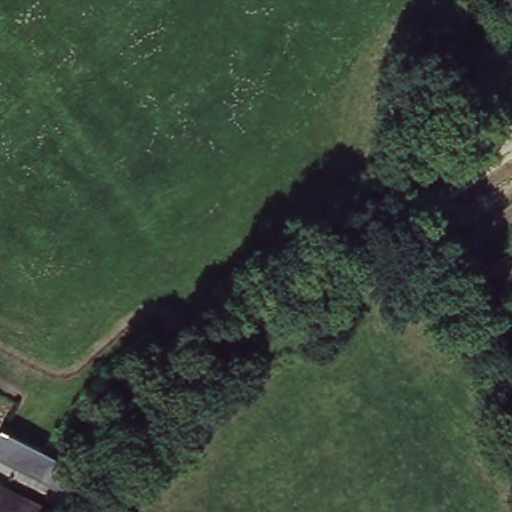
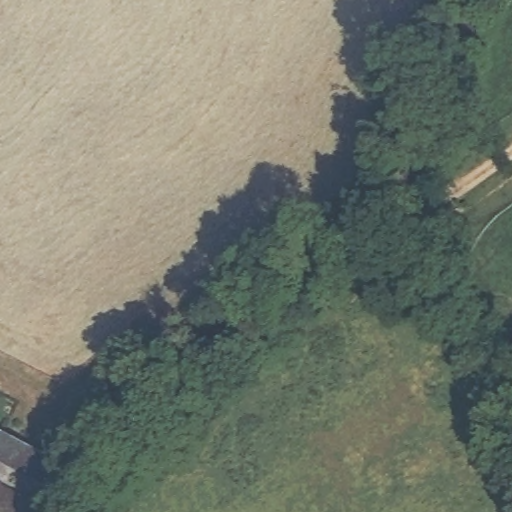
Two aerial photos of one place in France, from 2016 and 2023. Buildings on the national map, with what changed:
unchanged [(54,488),(0,462),(0,428),(69,462),(54,488)]
unchanged [(32,512),(0,512),(0,486),(36,503),(32,512)]

